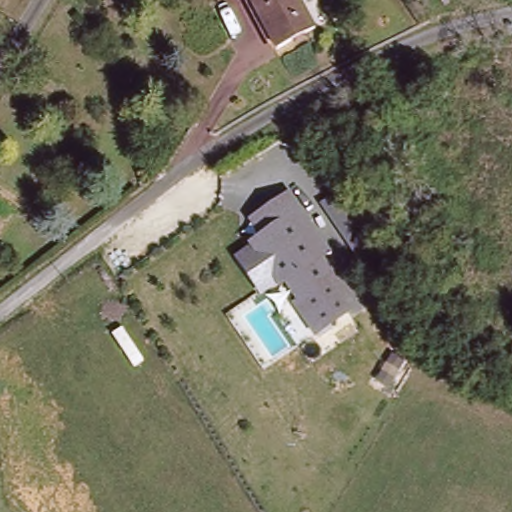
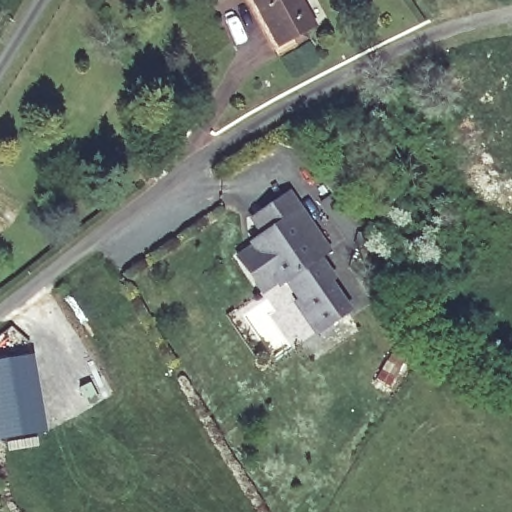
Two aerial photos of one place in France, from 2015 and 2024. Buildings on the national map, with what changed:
unchanged [(299,0),(312,35),(273,51),(253,0),(299,0)]
unchanged [(260,297),(236,257),(250,248),(248,244),(258,237),(248,220),(293,191),(333,250),(324,257),(339,279),(334,282),(355,312),(318,338),(293,302),(297,299),(288,286),(279,291),(277,287),(260,297)]
new [(0,439),(0,362),(33,357),(45,432),(0,439)]

